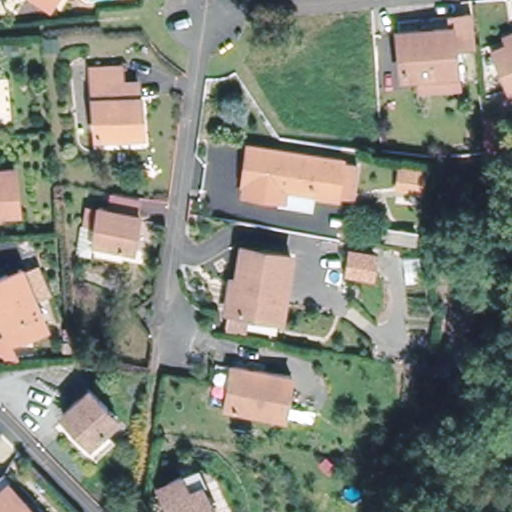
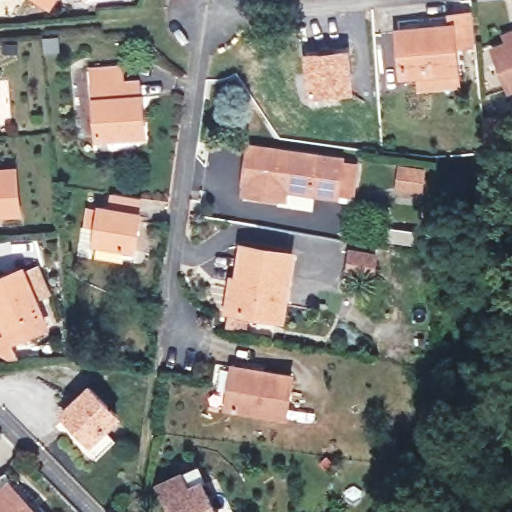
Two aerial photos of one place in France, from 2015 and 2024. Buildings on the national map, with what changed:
unchanged [(44,0),(53,0),(51,4),(44,0)]
unchanged [(461,82),(416,87),(415,72),(398,73),(394,31),(445,26),(445,15),(468,13),(470,42),(458,44),(460,67),(461,82)]
unchanged [(506,86),(491,49),(505,43),(501,35),(512,30),(512,84),(506,86)]
new [(350,49),(354,93),(308,96),(302,52),(350,49)]
unchanged [(97,138),(92,86),(91,71),(122,68),(124,83),(139,82),(144,134),(97,138)]
unchanged [(485,152),(483,128),(482,121),(501,119),(502,126),(505,150),(485,152)]
unchanged [(349,195),(333,192),(333,196),(276,189),(275,199),(240,194),(241,184),(239,184),(244,146),(338,158),(337,161),(353,163),(349,195)]
unchanged [(418,190),(398,187),(400,167),(425,171),(424,181),(419,180),(418,190)]
unchanged [(0,171),(11,170),(15,207),(0,209),(0,171)]
unchanged [(83,251),(87,220),(89,221),(90,205),(101,207),(102,202),(114,204),(115,189),(145,192),(138,246),(97,240),(95,252),(83,251)]
unchanged [(415,244),(389,241),(390,228),(417,231),(415,244)]
unchanged [(281,318),(229,310),(232,287),(237,287),(245,246),(291,254),(281,318)]
unchanged [(375,255),(374,280),(345,277),(346,249),(375,255)]
unchanged [(18,276),(34,269),(46,299),(30,306),(41,332),(3,347),(0,349),(0,281),(16,275),(18,276)]
unchanged [(406,356),(403,365),(387,360),(389,353),(390,348),(407,353),(406,356)]
unchanged [(286,418),(225,409),(232,366),(292,375),(286,418)]
unchanged [(92,442),(64,412),(90,387),(118,416),(92,442)]
unchanged [(0,440),(0,433),(4,437),(0,440)]
unchanged [(155,489),(176,478),(195,470),(203,485),(197,487),(209,512),(167,512),(155,489)]
unchanged [(0,487),(5,482),(9,479),(36,507),(42,512),(0,512),(0,487)]

